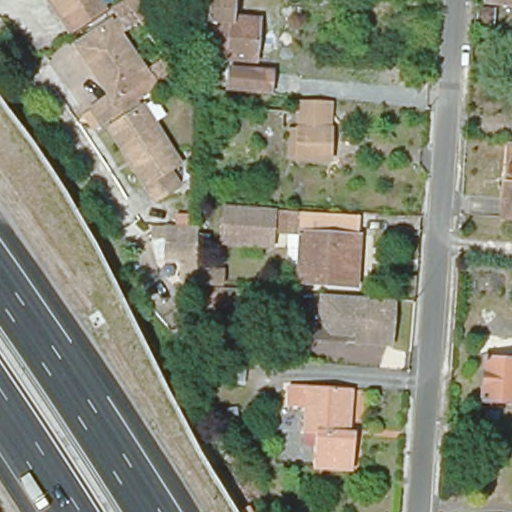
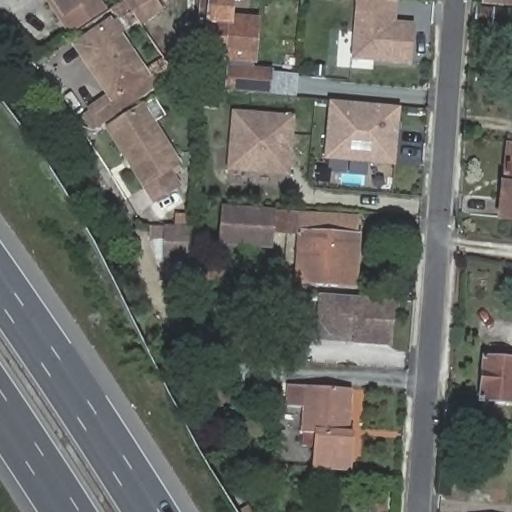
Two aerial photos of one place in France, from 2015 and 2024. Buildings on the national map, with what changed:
unchanged [(45,0),(88,0),(93,9),(64,28),(55,15),(45,0)]
demolished [(109,0),(115,0),(118,4),(120,7),(107,16),(104,13),(99,6),(109,0)]
new [(162,7),(165,11),(153,23),(148,18),(141,25),(139,21),(127,29),(110,8),(121,0),(158,0),(162,7)]
unchanged [(253,17),(251,59),(215,58),(216,52),(204,51),(205,18),(196,18),(196,0),(227,0),(225,16),(253,17)]
new [(415,22),(411,64),(351,59),(356,0),(398,0),(396,21),(415,22)]
unchanged [(512,2),(489,0),(512,0),(512,2)]
unchanged [(470,10),(482,11),(481,24),(469,23),(470,10)]
unchanged [(98,90),(90,78),(64,42),(70,38),(99,18),(133,66),(138,73),(141,71),(137,65),(153,54),(165,71),(149,82),(111,109),(92,123),(91,123),(83,112),(84,111),(103,98),(98,90)]
unchanged [(226,90),(228,67),(269,69),(268,94),(226,90)]
new [(401,106),(396,166),(324,160),(329,100),(401,106)]
unchanged [(162,165),(172,180),(150,196),(125,162),(100,126),(105,122),(132,103),(171,158),(162,165)]
demolished [(286,155),(287,128),(255,125),(255,118),(262,118),(263,110),(305,113),(306,104),(330,104),(326,158),(286,155)]
new [(227,171),(232,109),(295,115),(290,176),(227,171)]
unchanged [(512,218),(498,216),(502,180),(505,180),(509,143),(512,144),(512,218)]
unchanged [(230,204),(270,208),(266,250),(218,245),(222,204),(230,204)]
unchanged [(352,291),(296,287),(296,236),(283,235),(284,217),(353,220),(352,239),(355,239),(352,291)]
unchanged [(194,226),(195,226),(194,256),(193,256),(169,255),(169,230),(170,225),(194,226)]
unchanged [(357,306),(380,308),(392,309),(390,351),(355,348),(355,340),(338,339),(320,330),(323,303),(357,306)]
unchanged [(512,401),(492,399),(491,380),(474,377),(477,354),(512,358),(512,401)]
unchanged [(302,434),(304,410),(287,409),(288,388),(305,389),(348,392),(347,429),(347,436),(353,436),(350,471),(311,468),(312,447),(301,447),(302,434)]
unchanged [(512,443),(512,500),(506,499),(512,443)]

